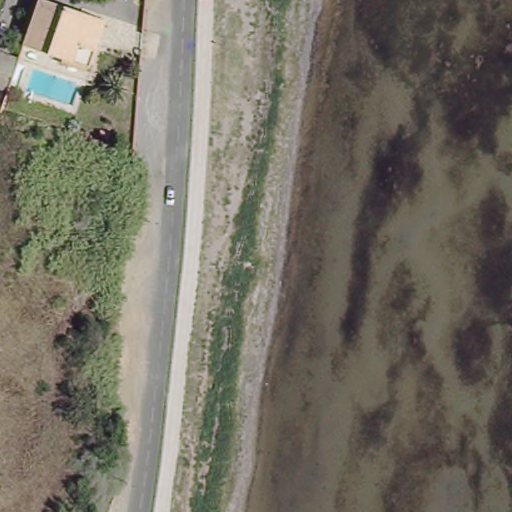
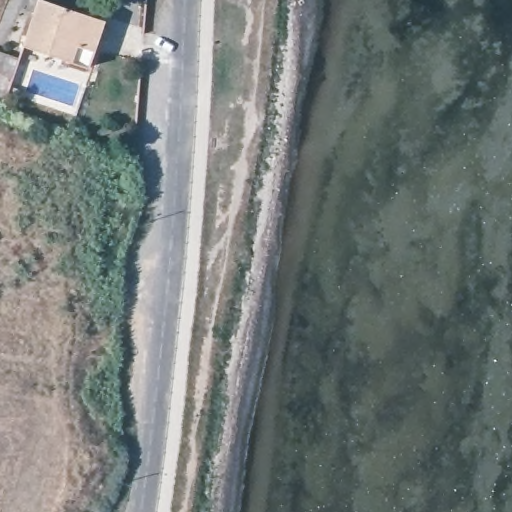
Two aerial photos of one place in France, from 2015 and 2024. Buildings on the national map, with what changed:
unchanged [(38,0),(55,0),(86,10),(103,15),(93,46),(87,64),(23,42),(38,0)]
unchanged [(12,79),(8,94),(0,91),(0,75),(12,79)]

